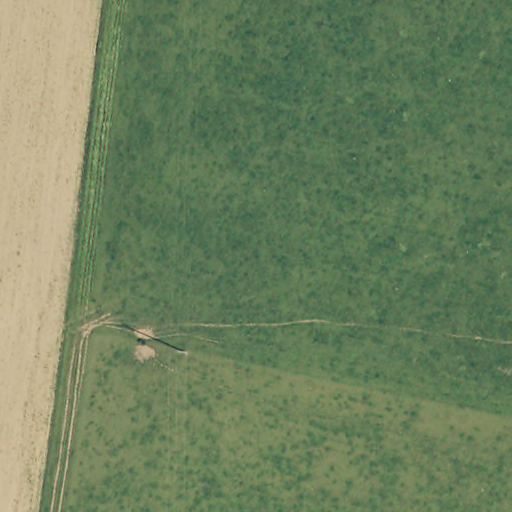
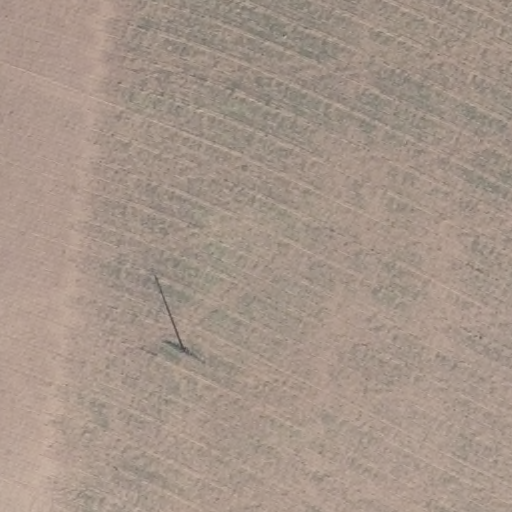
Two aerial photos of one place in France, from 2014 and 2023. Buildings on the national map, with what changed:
[]

